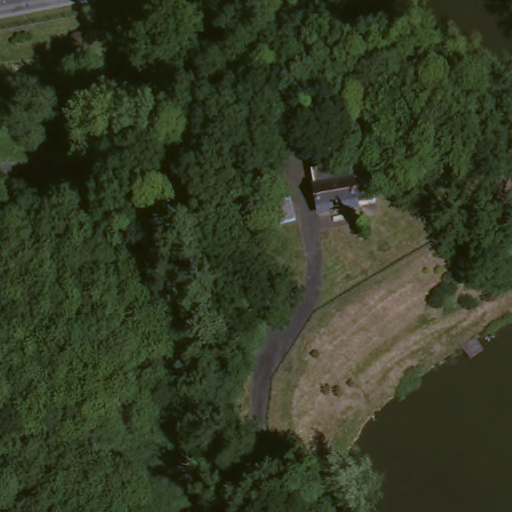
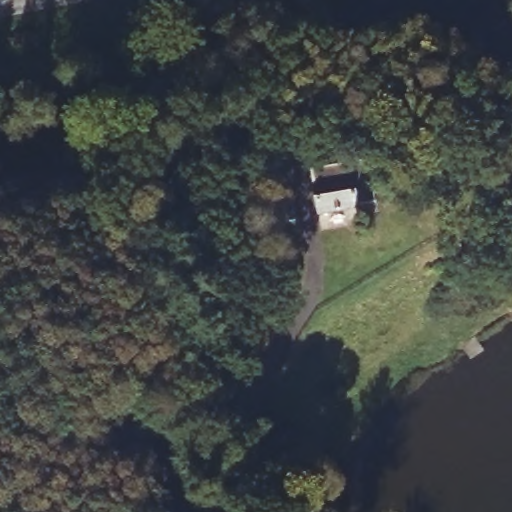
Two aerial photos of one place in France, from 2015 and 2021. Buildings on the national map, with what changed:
unchanged [(308,177),(341,171),(357,168),(363,166),(365,169),(372,205),(351,210),(317,217),(308,177)]
unchanged [(297,202),(303,226),(283,230),(277,207),(297,202)]

